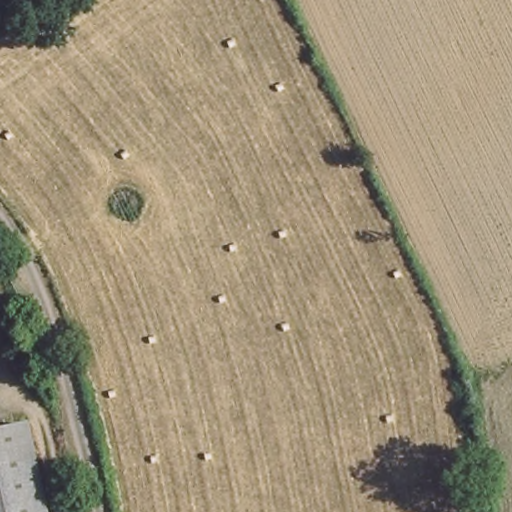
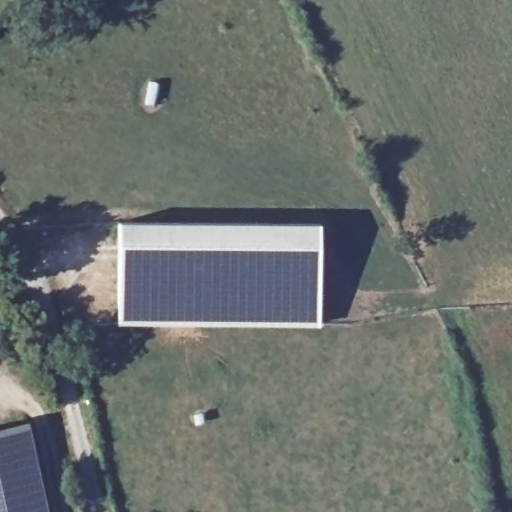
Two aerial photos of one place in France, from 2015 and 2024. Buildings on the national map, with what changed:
new [(320,222),(320,327),(119,324),(118,221),(320,222)]
unchanged [(45,512),(0,512),(0,433),(25,428),(45,512)]

